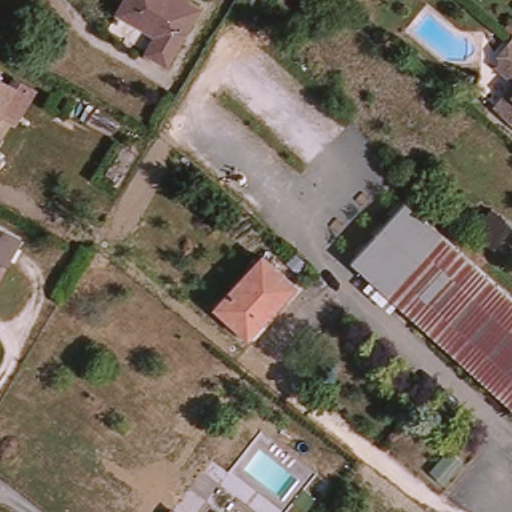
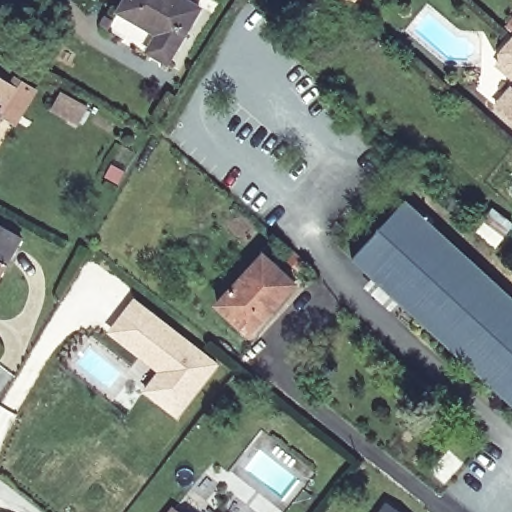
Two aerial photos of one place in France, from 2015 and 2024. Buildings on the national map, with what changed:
unchanged [(172,64),(152,52),(162,34),(125,11),(131,0),(186,0),(202,10),(172,64)]
unchanged [(512,43),(512,129),(494,114),(490,110),(511,85),(491,69),(495,65),(494,57),(509,40),(512,43)]
unchanged [(35,97),(15,130),(1,121),(0,123),(0,85),(10,91),(14,85),(35,97)]
unchanged [(512,409),(353,265),(406,206),(512,304),(512,409)]
unchanged [(22,239),(0,275),(0,226),(22,239)]
unchanged [(248,334),(219,305),(263,258),(284,277),(293,285),(251,331),(248,334)]
new [(135,297),(221,363),(179,418),(143,392),(159,371),(108,332),(135,297)]
new [(387,503),(398,512),(380,512),(387,503)]

